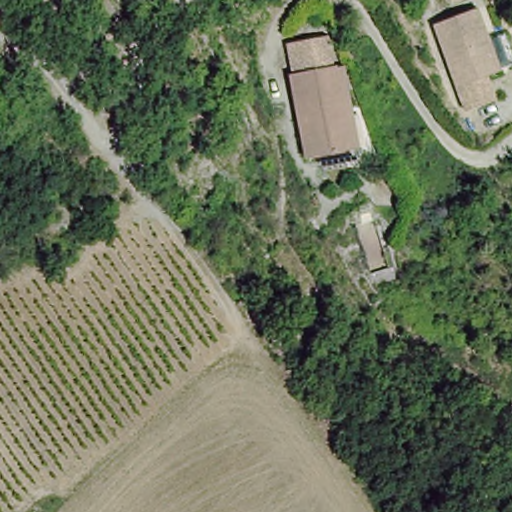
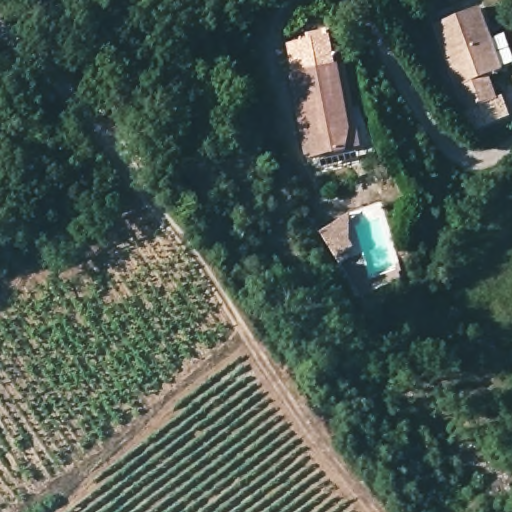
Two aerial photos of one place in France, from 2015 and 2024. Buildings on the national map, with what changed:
unchanged [(480,13),(488,38),(501,34),(511,68),(488,74),(498,106),(463,115),(433,27),(480,13)]
unchanged [(289,74),(297,73),(292,44),(331,36),(335,69),(345,68),(350,113),(363,111),(366,150),(303,157),(289,74)]
new [(350,240),(354,246),(346,251),(350,257),(340,262),(319,232),(350,212),(350,240)]

